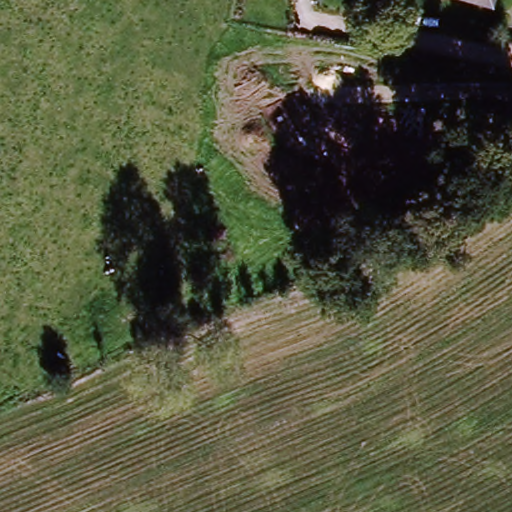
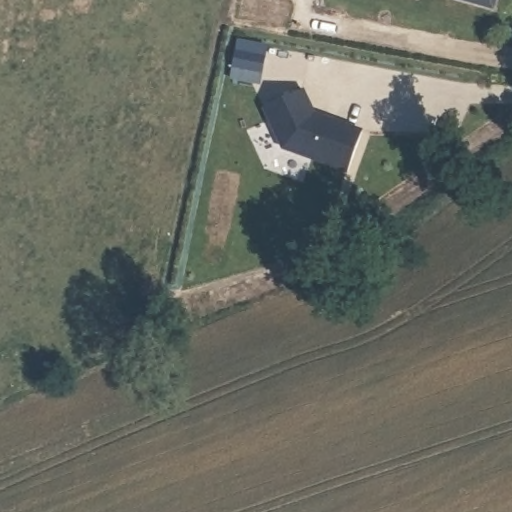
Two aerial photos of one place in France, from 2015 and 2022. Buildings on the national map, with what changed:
unchanged [(477,10),(449,0),(502,0),(497,16),(477,10)]
new [(305,90),(316,115),(364,130),(348,173),(281,150),(261,109),(305,90)]

